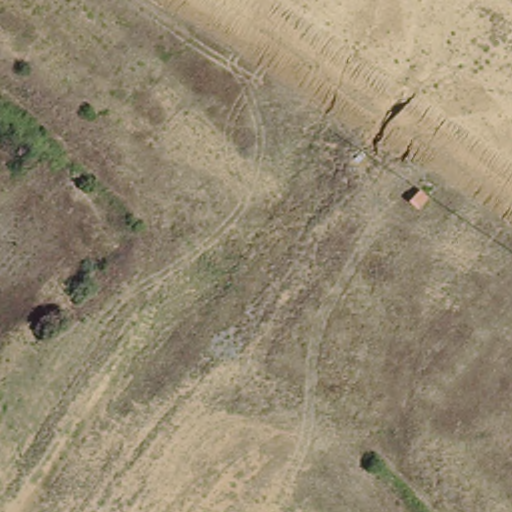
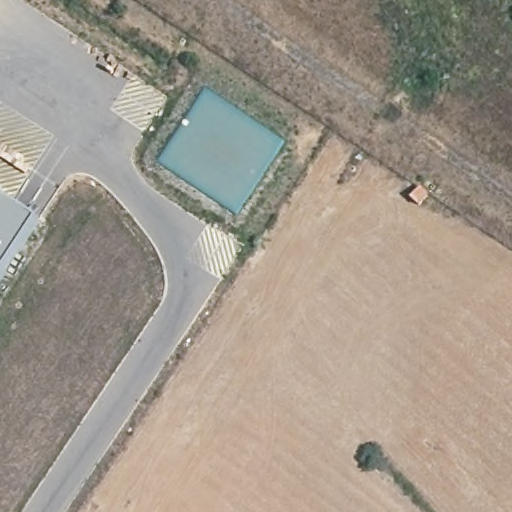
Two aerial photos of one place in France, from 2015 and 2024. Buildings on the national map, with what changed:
unchanged [(430,197),(420,207),(411,199),(422,189),(430,197)]
new [(0,284),(0,195),(41,222),(0,284)]

